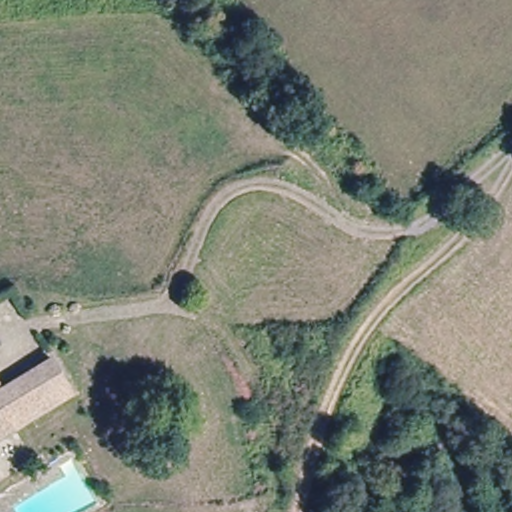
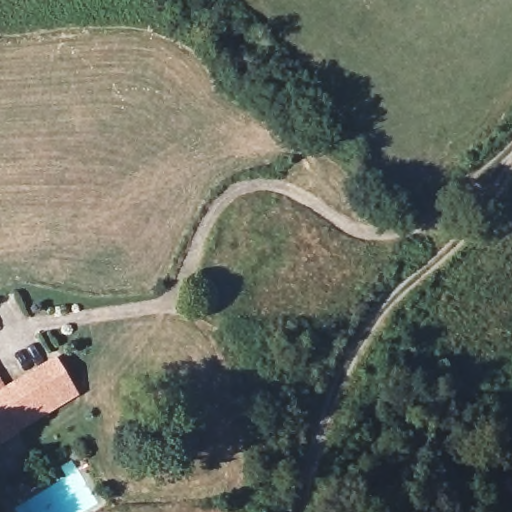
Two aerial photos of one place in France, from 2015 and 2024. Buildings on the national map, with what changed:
unchanged [(11,425),(0,432),(0,382),(45,352),(60,376),(3,415),(11,425)]
unchanged [(71,391),(11,425),(3,415),(60,376),(71,391)]

